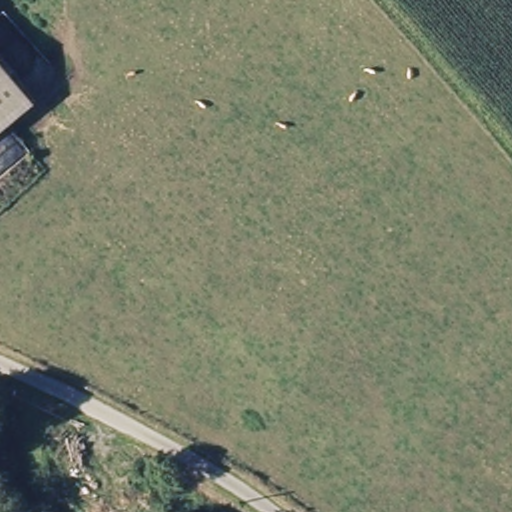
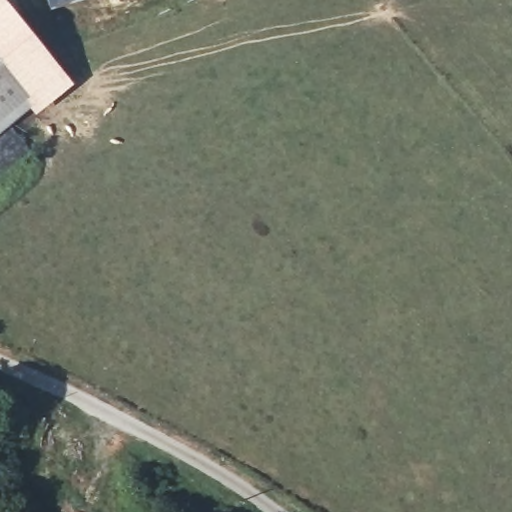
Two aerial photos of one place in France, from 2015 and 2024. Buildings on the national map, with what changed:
new [(33,109),(0,70),(0,0),(4,0),(73,85),(35,115),(31,110),(33,109)]
new [(50,10),(47,0),(83,0),(50,10)]
unchanged [(0,135),(0,70),(33,109),(0,135)]

